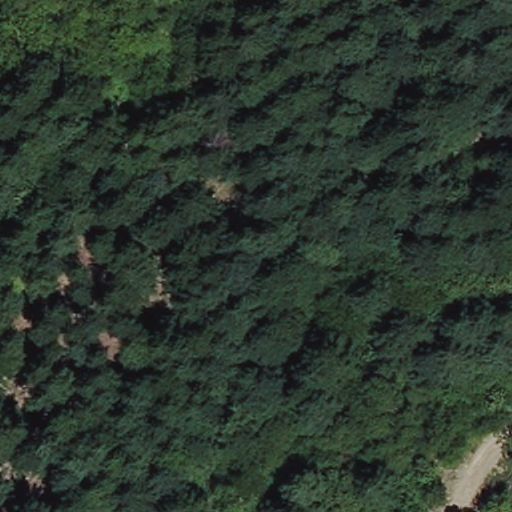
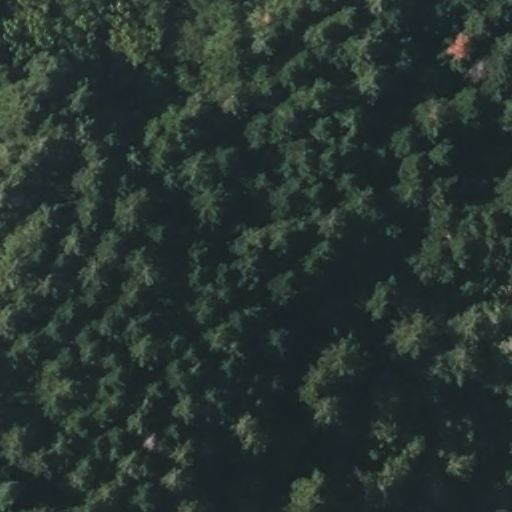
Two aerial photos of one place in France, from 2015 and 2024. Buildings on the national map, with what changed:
unchanged [(97,120),(97,103),(128,97),(128,109),(128,117),(118,118),(97,120)]

